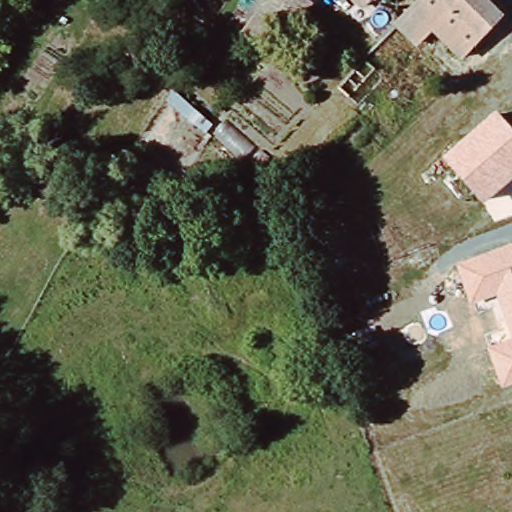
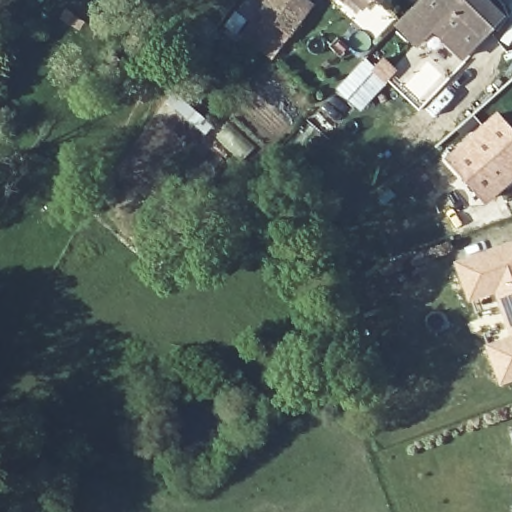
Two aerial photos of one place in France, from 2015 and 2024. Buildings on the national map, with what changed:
unchanged [(264,31),(257,38),(235,19),(248,2),(249,0),(287,0),(300,11),(283,30),(285,32),(277,42),(264,31)]
unchanged [(425,22),(409,7),(416,0),(476,0),(494,18),(458,52),(425,22)]
new [(358,111),(351,104),(336,89),(362,61),(378,76),(385,82),(358,111)]
unchanged [(440,161),(490,118),(512,142),(512,168),(477,198),(440,161)]
unchanged [(488,348),(511,340),(496,296),(471,303),(457,262),(512,244),(512,384),(503,387),(488,348)]

